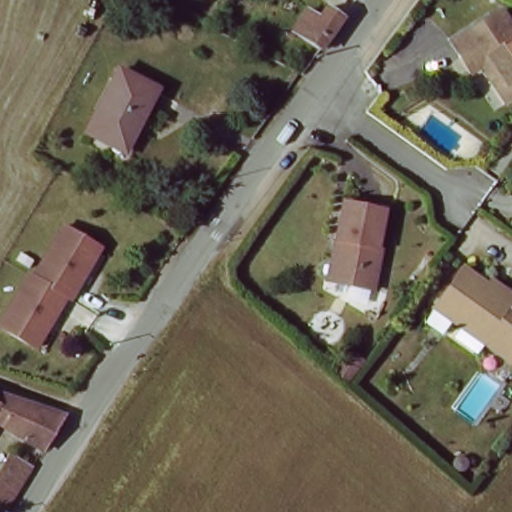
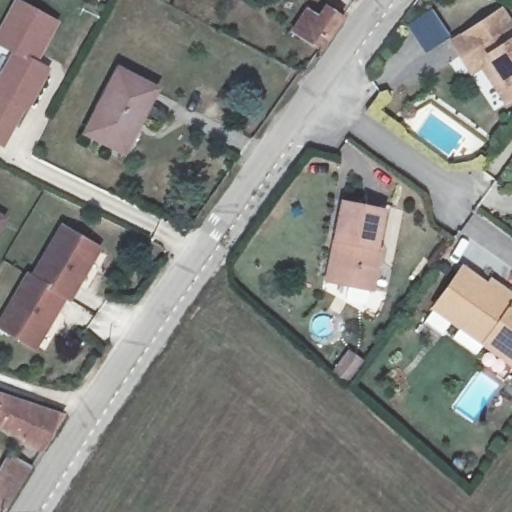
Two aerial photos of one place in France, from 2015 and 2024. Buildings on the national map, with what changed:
new [(16,56),(0,48),(0,38),(19,5),(58,26),(42,57),(37,66),(50,73),(27,115),(24,113),(16,128),(4,150),(0,147),(0,85),(16,56)]
unchanged [(452,42),(501,7),(512,22),(512,102),(511,103),(500,89),(504,85),(488,66),(477,73),(463,56),(452,42)]
unchanged [(330,37),(317,55),(288,32),(302,13),(313,21),(321,10),(340,23),(330,37)]
unchanged [(158,87),(125,150),(88,131),(121,67),(158,87)]
unchanged [(396,139),(413,115),(420,120),(403,144),(396,139)]
unchanged [(332,238),(341,200),(383,210),(375,247),(381,248),(371,291),(335,282),(323,279),(332,238)]
new [(5,222),(0,230),(0,219),(5,222)]
unchanged [(101,248),(71,300),(67,297),(40,342),(36,348),(11,333),(0,326),(0,324),(30,274),(34,277),(64,226),(101,248)]
unchanged [(493,332),(470,315),(457,316),(438,302),(465,265),(488,282),(494,275),(512,289),(512,357),(488,339),(493,332)]
unchanged [(0,427),(0,395),(63,417),(46,444),(0,427)]
unchanged [(5,509),(0,508),(0,471),(12,453),(32,466),(5,509)]

